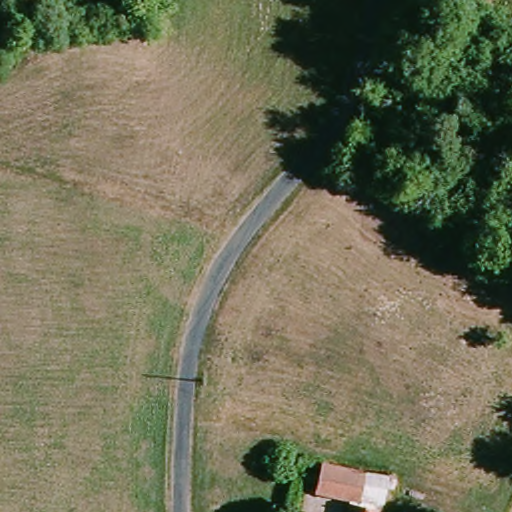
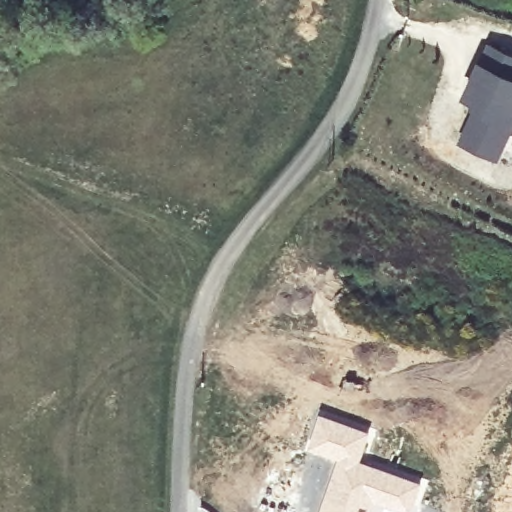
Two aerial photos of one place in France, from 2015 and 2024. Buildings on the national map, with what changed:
new [(512,136),(499,162),(460,146),(479,101),(465,96),(482,58),(489,44),(512,55),(512,136)]
new [(374,429),(364,458),(429,479),(419,509),(426,512),(318,512),(335,462),(304,450),(320,410),(374,429)]
demolished [(317,500),(320,490),(325,473),(325,468),(365,477),(387,482),(382,512),(354,512),(355,509),(317,500)]

